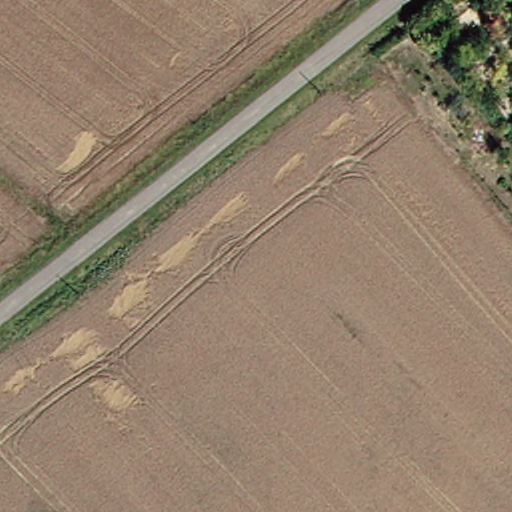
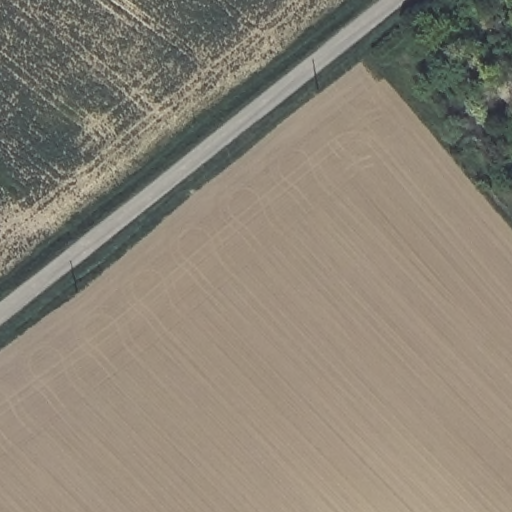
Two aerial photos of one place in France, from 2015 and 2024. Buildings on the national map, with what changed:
[]

